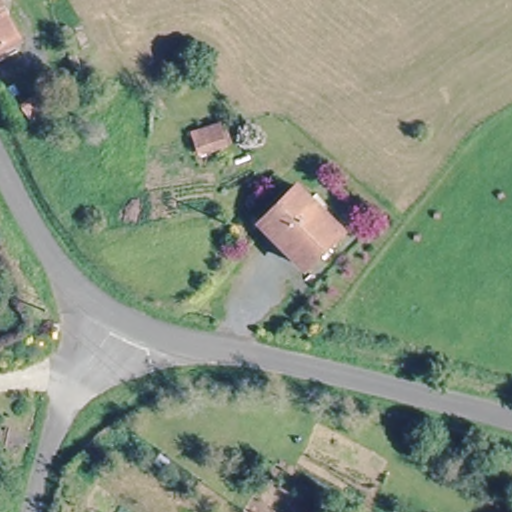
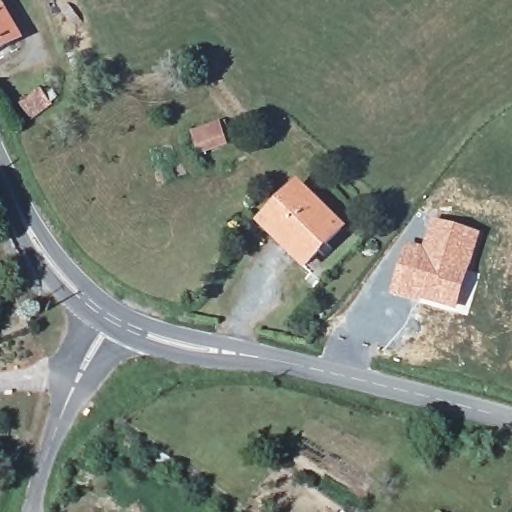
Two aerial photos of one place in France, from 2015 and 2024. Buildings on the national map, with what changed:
unchanged [(6,15),(0,18),(0,6),(6,15)]
unchanged [(31,118),(22,106),(41,92),(50,104),(31,118)]
unchanged [(223,142),(197,151),(194,151),(189,133),(217,123),(219,129),(223,142)]
unchanged [(297,187),(345,229),(311,270),(263,229),(297,187)]
new [(407,243),(422,247),(432,220),(482,235),(457,311),(389,294),(407,243)]

